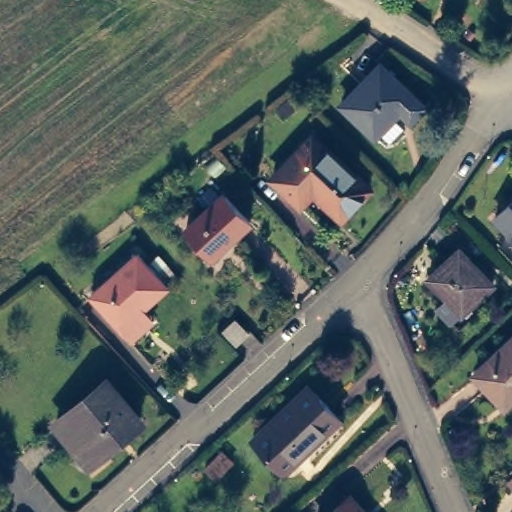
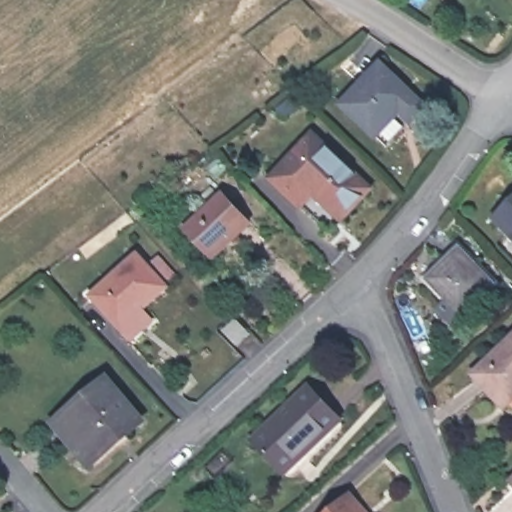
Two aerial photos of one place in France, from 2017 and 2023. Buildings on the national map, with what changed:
unchanged [(425,103),(414,113),(402,104),(376,130),(345,99),(382,61),(425,103)]
unchanged [(318,131),(372,185),(344,214),(316,188),(303,200),(277,173),(318,131)]
unchanged [(250,221),(212,258),(185,232),(222,195),(250,221)]
unchanged [(512,204),(512,235),(496,219),(512,204)]
unchanged [(492,281),(461,312),(427,279),(459,248),(492,281)]
unchanged [(142,254),(172,288),(123,328),(95,294),(142,254)]
unchanged [(257,333),(242,346),(230,332),(245,318),(257,333)]
unchanged [(477,372),(512,339),(512,392),(503,400),(477,372)]
unchanged [(111,385),(145,425),(95,467),(61,427),(111,385)]
unchanged [(344,420),(290,475),(260,446),(312,391),(344,420)]
unchanged [(360,512),(345,512),(353,505),(360,512)]

